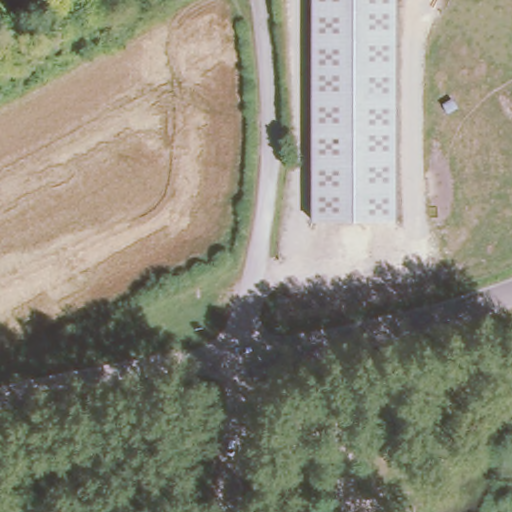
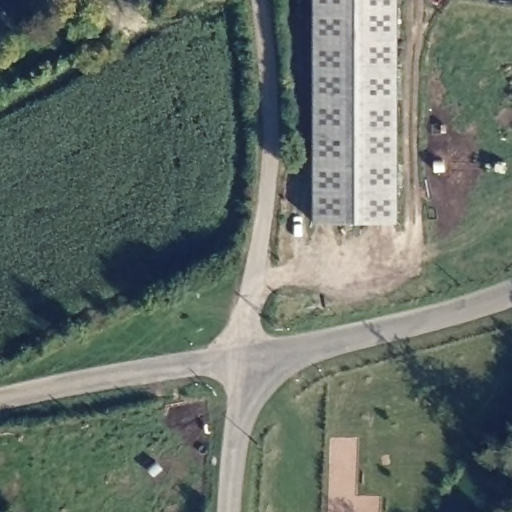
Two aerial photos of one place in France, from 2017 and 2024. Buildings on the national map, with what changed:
unchanged [(396,218),(312,220),(311,0),(398,0),(396,218)]

